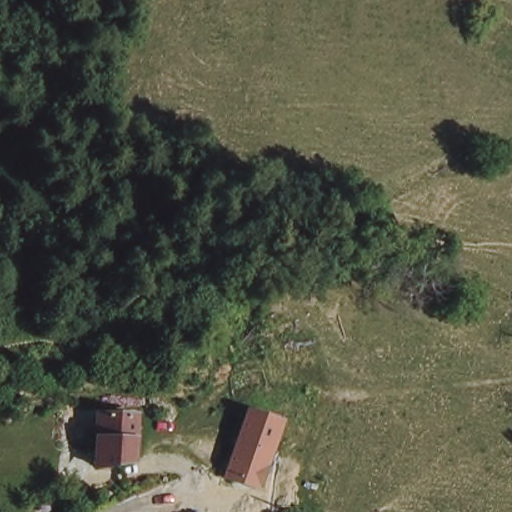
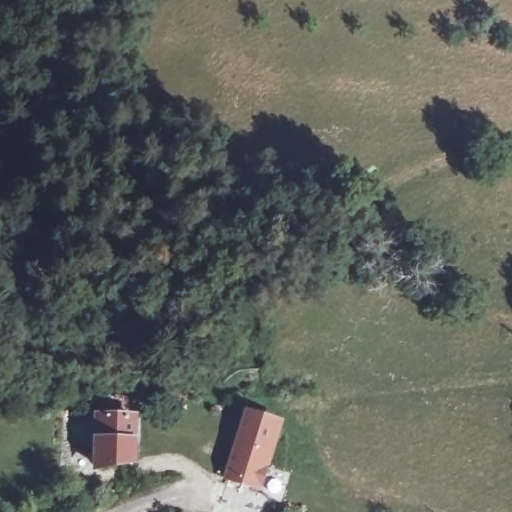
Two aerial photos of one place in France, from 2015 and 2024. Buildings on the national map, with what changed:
unchanged [(132,414),(134,462),(126,466),(97,468),(97,418),(132,414)]
unchanged [(222,477),(238,431),(242,418),(270,426),(275,428),(270,441),(257,487),(222,477)]

